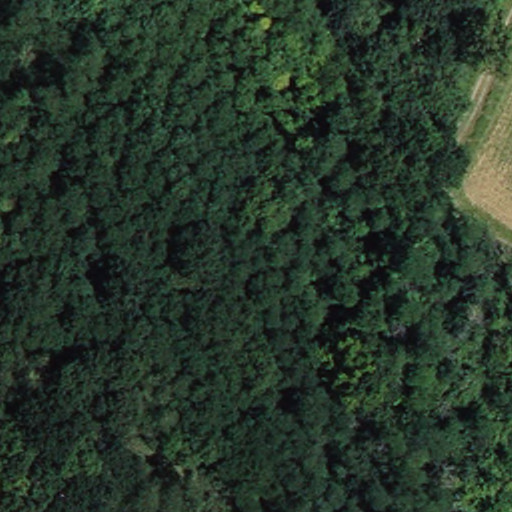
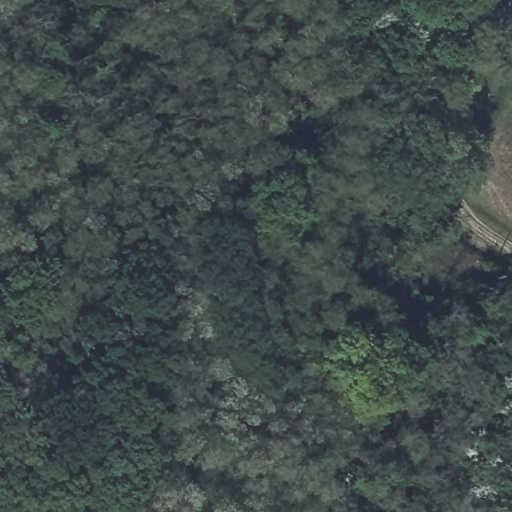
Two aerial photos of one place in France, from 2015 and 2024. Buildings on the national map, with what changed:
[]

